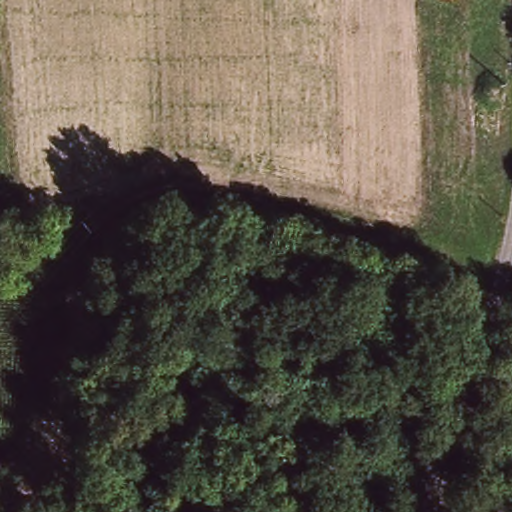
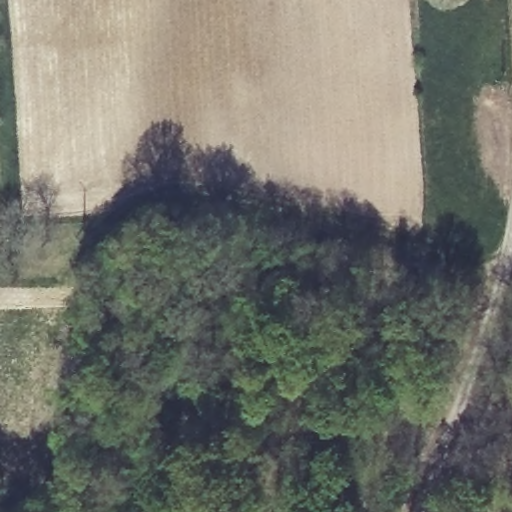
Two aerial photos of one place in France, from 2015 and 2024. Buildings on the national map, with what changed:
[]

